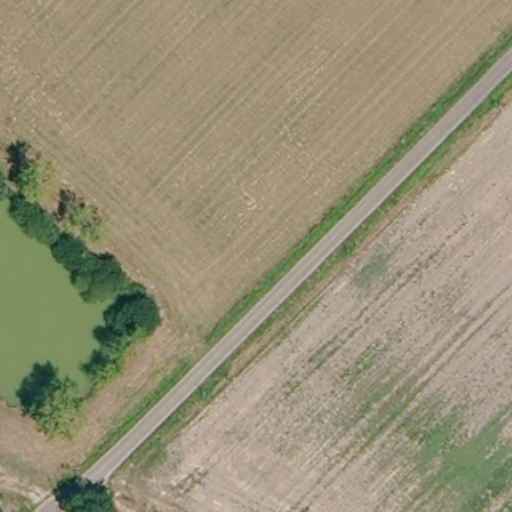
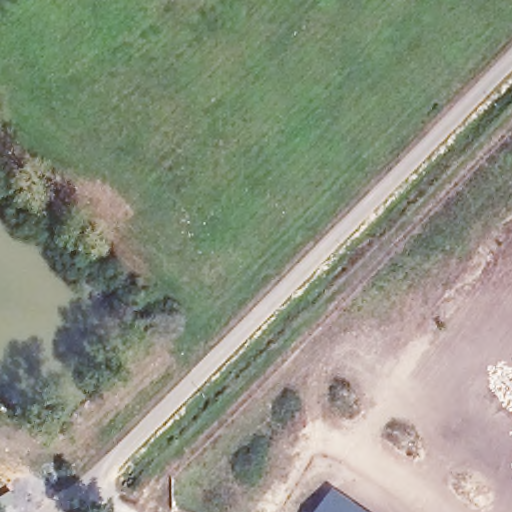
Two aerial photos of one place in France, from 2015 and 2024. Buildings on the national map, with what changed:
new [(334,488),(369,512),(318,512),(334,488)]

